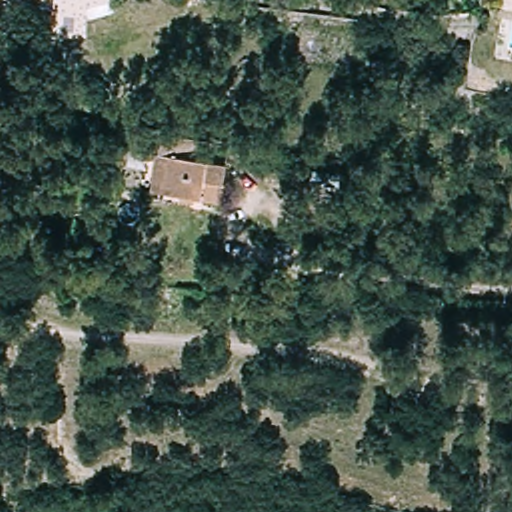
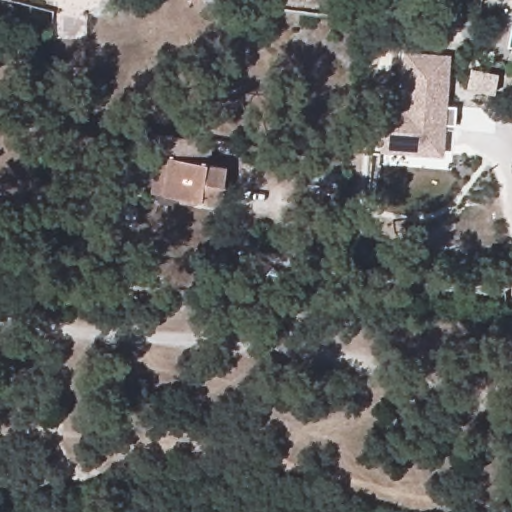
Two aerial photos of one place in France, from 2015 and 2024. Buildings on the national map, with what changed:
unchanged [(12,7),(0,5),(0,0),(13,0),(12,7)]
new [(450,55),(447,106),(456,106),(454,130),(445,129),(443,156),(379,151),(382,105),(399,106),(404,51),(450,55)]
unchanged [(163,141),(216,150),(213,169),(229,171),(223,210),(154,199),(163,141)]

